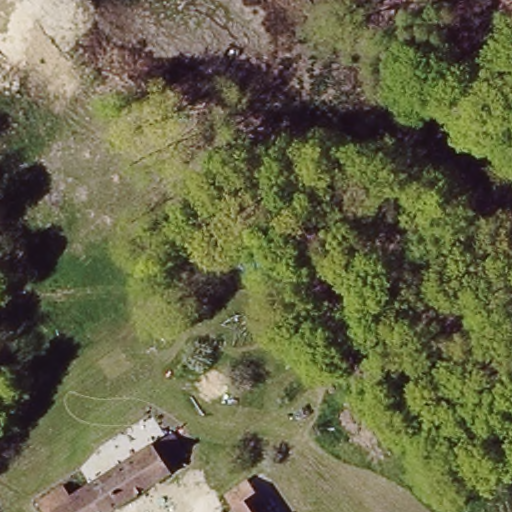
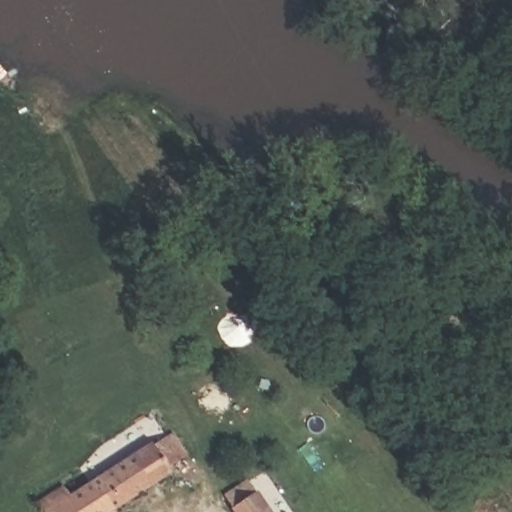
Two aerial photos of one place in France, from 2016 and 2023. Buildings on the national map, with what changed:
unchanged [(163,437),(181,475),(115,512),(60,512),(56,505),(163,437)]
unchanged [(245,485),(264,512),(227,512),(221,502),(245,485)]

